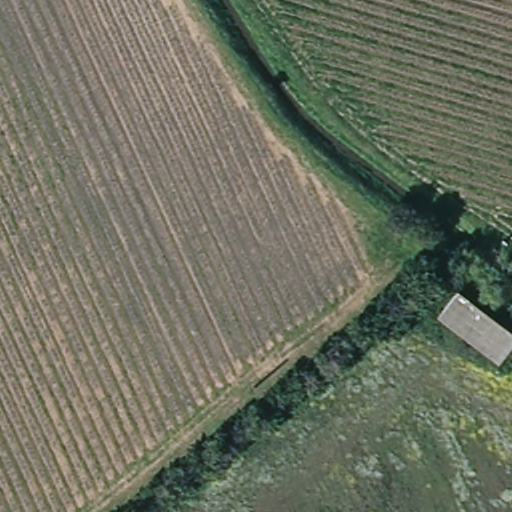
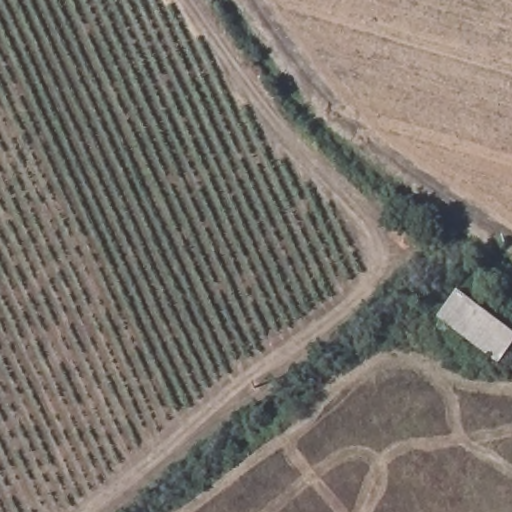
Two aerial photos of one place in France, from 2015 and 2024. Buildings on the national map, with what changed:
unchanged [(512,341),(497,364),(441,322),(458,291),(512,328),(512,341)]

